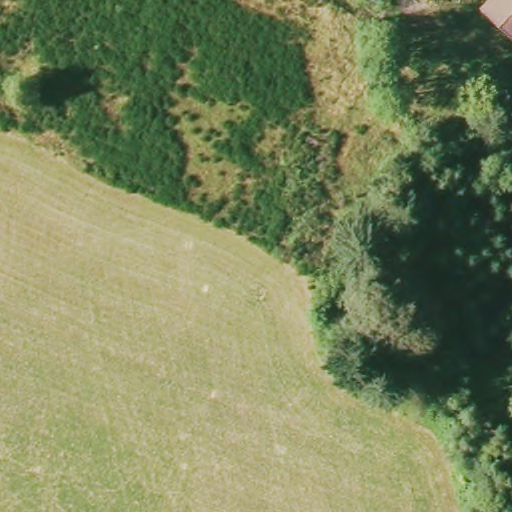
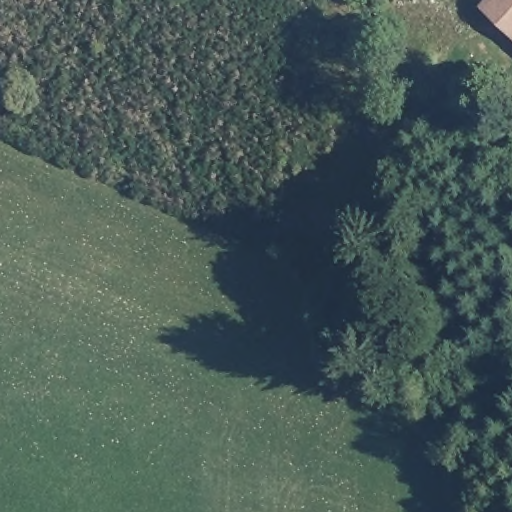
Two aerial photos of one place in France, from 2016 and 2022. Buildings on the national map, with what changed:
unchanged [(512,0),(512,35),(483,6),(489,0),(512,0)]

